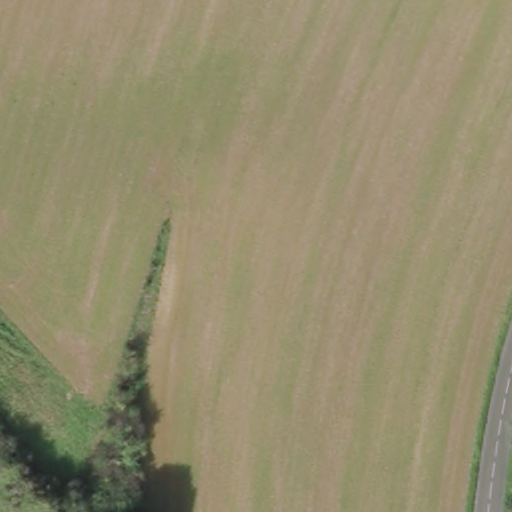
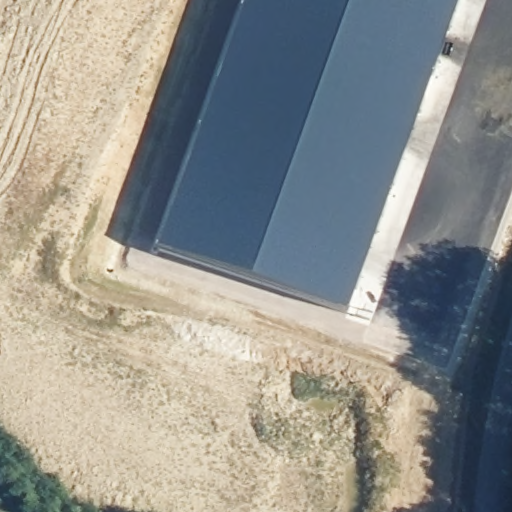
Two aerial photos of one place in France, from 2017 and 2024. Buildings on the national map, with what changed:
new [(462,0),(350,316),(160,246),(247,0),(462,0)]

